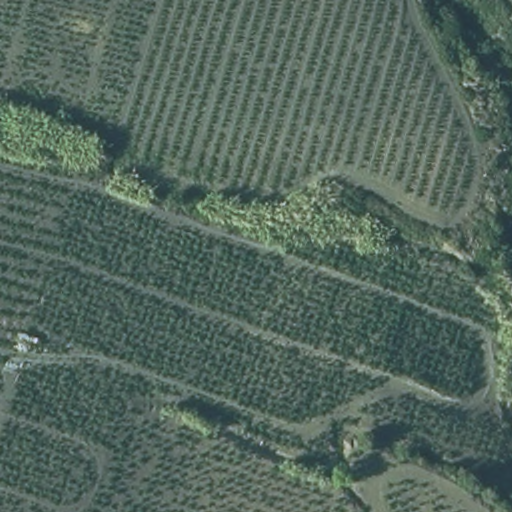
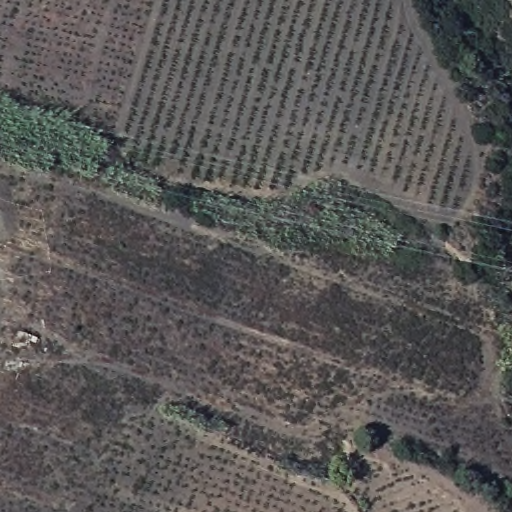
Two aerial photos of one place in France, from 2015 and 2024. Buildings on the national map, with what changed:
unchanged [(342,456),(337,470),(317,467),(323,449),(342,456)]

